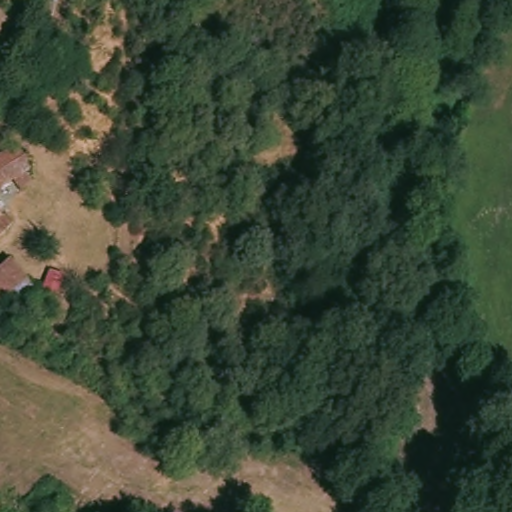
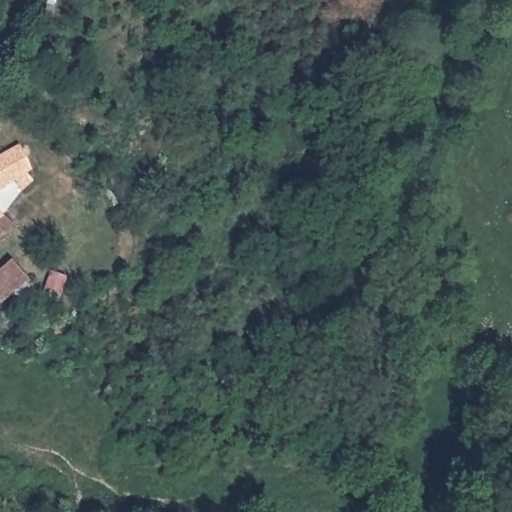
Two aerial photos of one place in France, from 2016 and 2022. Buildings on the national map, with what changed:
unchanged [(31,172),(25,175),(32,182),(21,192),(13,182),(1,190),(0,189),(0,157),(19,147),(31,172)]
unchanged [(1,218),(3,217),(13,226),(5,235),(0,239),(0,217),(1,218)]
unchanged [(28,280),(0,304),(0,271),(12,261),(28,280)]

